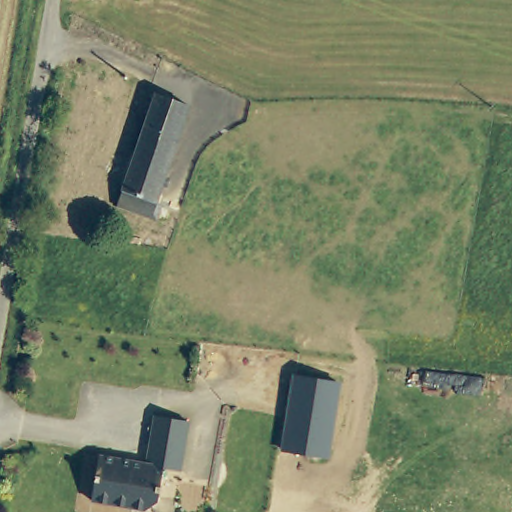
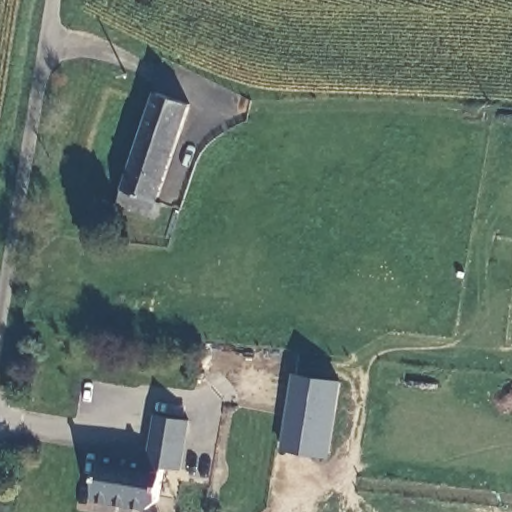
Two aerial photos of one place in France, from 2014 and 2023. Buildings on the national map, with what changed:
unchanged [(116,200),(121,187),(155,91),(188,103),(152,198),(146,212),(116,200)]
unchanged [(342,382),(329,459),(280,451),(293,374),(342,382)]
unchanged [(157,415),(191,421),(182,470),(165,468),(161,501),(150,509),(95,502),(101,457),(150,465),(157,415)]

